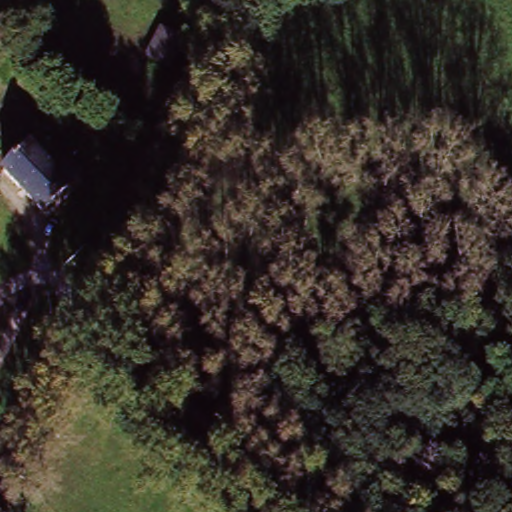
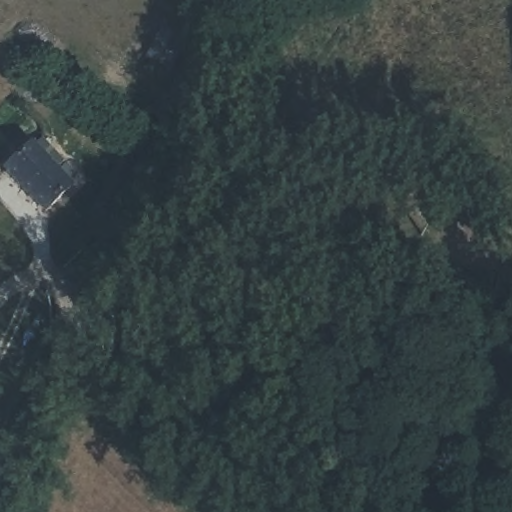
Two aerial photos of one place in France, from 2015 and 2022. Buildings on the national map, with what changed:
unchanged [(145,61),(161,34),(183,49),(167,75),(145,61)]
unchanged [(61,175),(71,185),(64,192),(68,196),(43,221),(2,180),(25,155),(32,146),(52,166),(45,174),(54,182),(61,175)]

